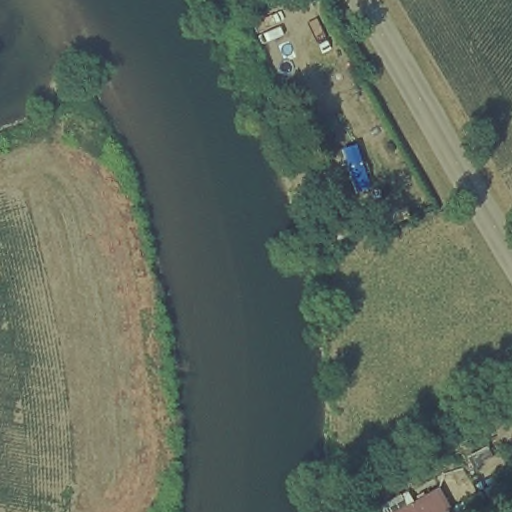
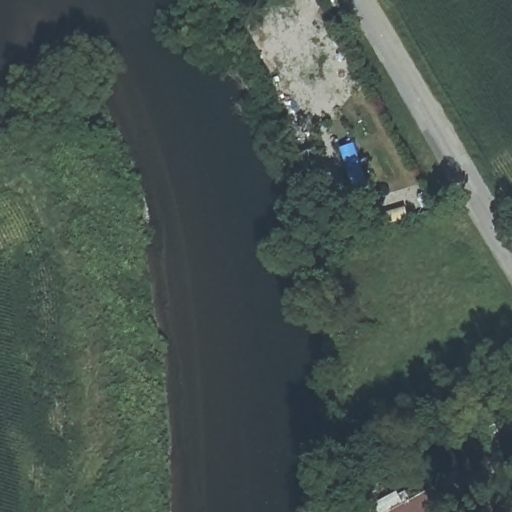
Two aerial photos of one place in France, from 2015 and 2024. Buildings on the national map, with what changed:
unchanged [(435,512),(396,512),(428,496),(435,512)]

